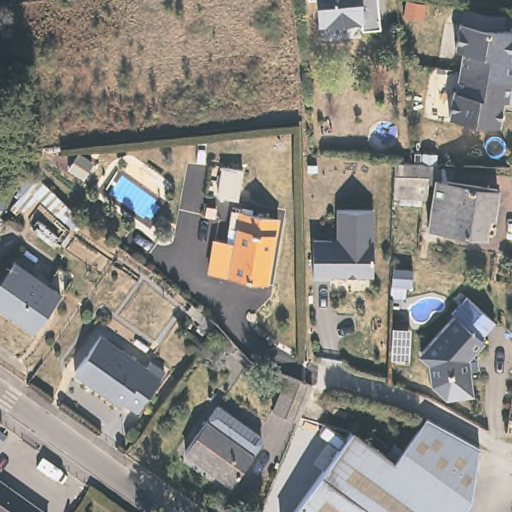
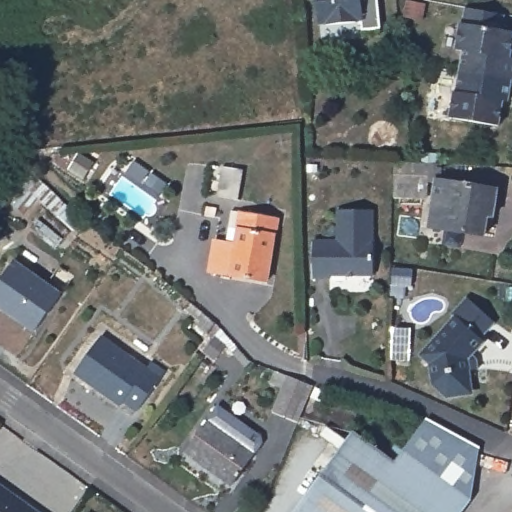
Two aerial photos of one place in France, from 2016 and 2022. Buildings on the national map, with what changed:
unchanged [(364,27),(363,17),(322,22),(319,0),(380,0),(383,24),(364,27)]
unchanged [(508,58),(512,59),(512,82),(509,81),(458,72),(462,52),(454,50),(459,24),(461,24),(464,10),(504,16),(501,31),(512,33),(512,36),(508,58)]
unchanged [(509,81),(505,103),(500,103),(496,126),(447,118),(451,93),(454,93),(458,72),(509,81)]
unchanged [(402,201),(403,194),(395,194),(396,178),(397,158),(422,160),(423,149),(437,150),(437,160),(438,161),(438,166),(444,166),(443,177),(501,187),(496,214),(491,213),(487,233),(431,223),(439,181),(434,180),(430,180),(429,195),(424,195),(423,202),(402,201)]
unchanged [(66,222),(35,199),(22,214),(11,207),(21,195),(4,183),(17,166),(76,211),(66,222)]
unchanged [(239,170),(234,199),(215,196),(219,167),(239,170)]
unchanged [(0,214),(0,200),(7,205),(0,214)]
unchanged [(213,209),(211,219),(202,217),(203,208),(213,209)]
unchanged [(217,237),(229,239),(235,208),(280,216),(269,278),(232,271),(212,268),(217,237)]
unchanged [(339,239),(338,209),(374,209),(375,275),(357,275),(357,273),(350,274),(350,275),(332,275),(332,278),(315,278),(315,240),(339,239)]
unchanged [(212,240),(210,250),(196,247),(198,238),(212,240)]
unchanged [(35,334),(0,310),(0,283),(12,266),(60,300),(35,334)]
unchanged [(480,367),(481,377),(469,377),(471,400),(448,401),(436,389),(435,368),(424,359),(456,321),(454,318),(468,301),(497,325),(483,342),(487,345),(475,359),(480,367)]
unchanged [(145,373),(149,367),(163,377),(135,417),(121,407),(119,410),(74,377),(100,341),(145,373)]
unchanged [(308,386),(294,423),(270,413),(285,375),(308,386)]
unchanged [(382,459),(391,446),(401,453),(424,420),(478,446),(469,501),(461,512),(294,512),(348,435),(382,459)]
unchanged [(234,444),(242,434),(262,448),(232,489),(185,456),(207,424),(234,444)]
unchanged [(0,512),(0,489),(32,512),(0,512)]

